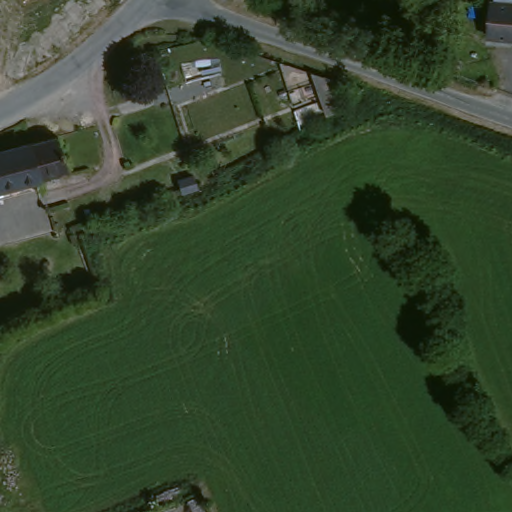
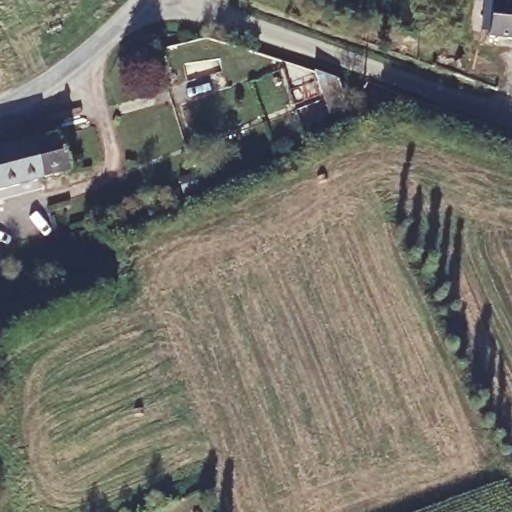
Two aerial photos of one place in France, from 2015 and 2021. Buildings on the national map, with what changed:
unchanged [(491,2),(496,2),(496,0),(512,0),(512,43),(490,41),(491,2)]
unchanged [(327,84),(348,91),(359,111),(344,119),(327,84)]
unchanged [(35,144),(38,143),(59,138),(69,174),(44,180),(0,190),(0,154),(35,144)]

